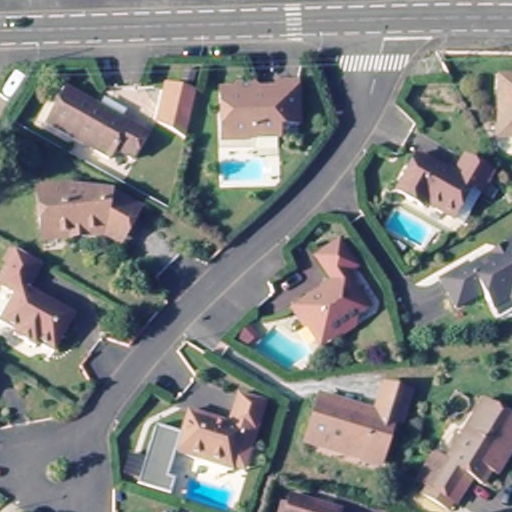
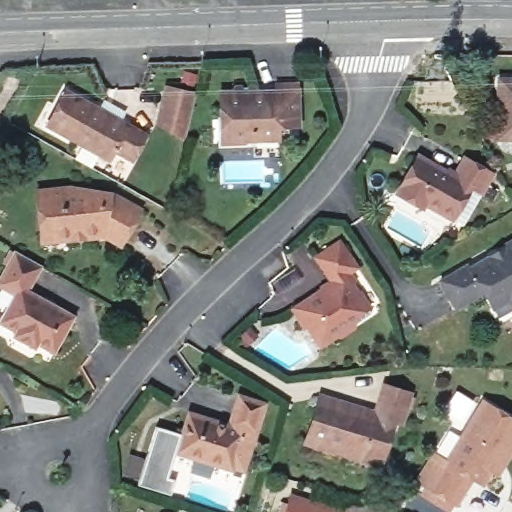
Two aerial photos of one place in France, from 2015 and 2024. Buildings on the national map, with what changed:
unchanged [(195,91),(184,139),(155,121),(164,85),(195,91)]
unchanged [(244,145),(227,146),(225,117),(224,117),(222,96),(232,96),(237,90),(257,89),(265,96),(279,96),(280,85),(299,85),(302,126),(290,129),(291,134),(281,134),(281,143),(244,145)]
unchanged [(512,87),(512,137),(505,136),(507,103),(500,103),(501,86),(512,87)]
unchanged [(140,126),(120,164),(57,130),(77,93),(140,126)]
unchanged [(486,192),(477,187),(458,220),(436,207),(432,212),(405,197),(423,159),(457,178),(467,159),(495,175),(486,192)]
unchanged [(127,240),(103,230),(102,242),(82,245),(81,238),(41,241),(37,212),(36,195),(41,194),(69,192),(107,197),(137,214),(127,240)]
unchanged [(486,298),(480,287),(452,302),(437,274),(463,260),(466,263),(506,241),(505,238),(512,234),(512,293),(510,289),(487,301),(486,298)]
unchanged [(41,269),(27,292),(74,319),(54,354),(39,346),(36,351),(13,337),(16,333),(0,324),(0,321),(14,299),(0,291),(0,278),(14,254),(36,266),(41,269)]
unchanged [(314,343),(294,313),(331,288),(321,273),(347,256),(357,271),(351,275),(357,285),(355,287),(361,297),(363,296),(373,310),(357,321),(360,325),(337,340),(334,336),(317,347),(314,343)]
unchanged [(364,457),(308,442),(321,398),(378,413),(386,387),(411,393),(403,423),(396,421),(387,454),(385,463),(364,457)]
unchanged [(234,467),(232,470),(175,454),(187,410),(230,421),(238,390),(265,398),(251,447),(245,469),(234,467)]
unchanged [(477,475),(461,504),(459,503),(455,511),(425,493),(430,486),(427,485),(444,457),(449,460),(485,398),(512,414),(512,458),(505,471),(497,466),(487,481),(477,475)]
unchanged [(283,508),(291,510),(294,498),(342,512),(282,512),(283,508)]

